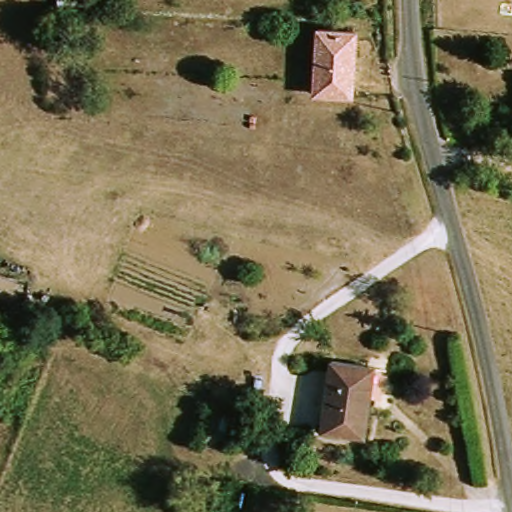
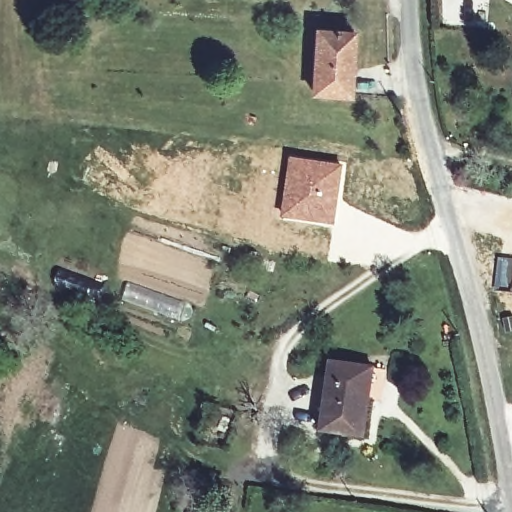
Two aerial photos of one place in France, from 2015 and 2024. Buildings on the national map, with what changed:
unchanged [(507,0),(510,0),(509,1),(507,0)]
unchanged [(316,28),(350,31),(345,91),(311,89),(316,28)]
new [(290,156),(343,164),(335,225),(280,216),(290,156)]
new [(512,259),(512,272),(509,288),(492,286),(496,256),(512,259)]
unchanged [(321,428),(330,360),(367,366),(375,367),(370,402),(365,434),(321,428)]

